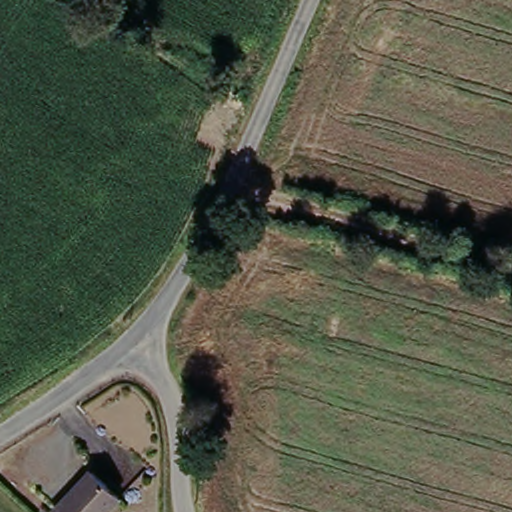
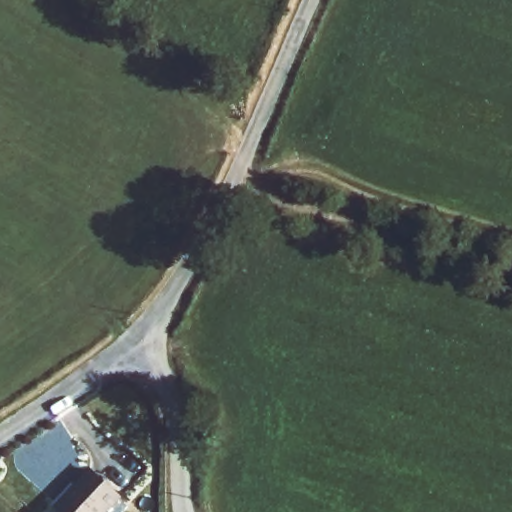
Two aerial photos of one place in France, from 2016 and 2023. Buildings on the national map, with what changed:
unchanged [(118,508),(114,512),(57,512),(91,481),(118,508)]

